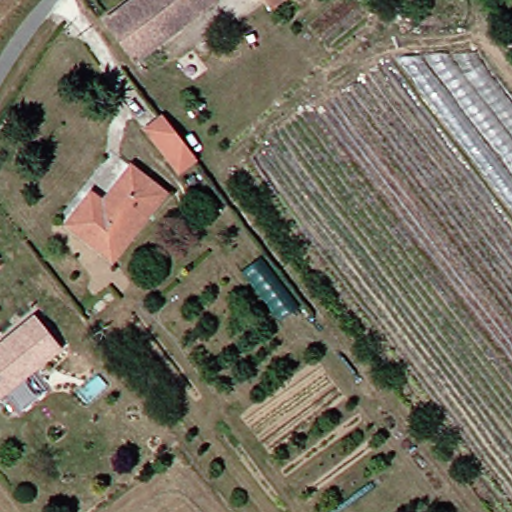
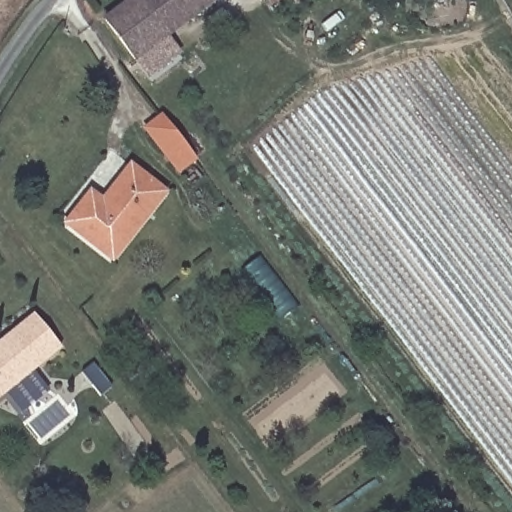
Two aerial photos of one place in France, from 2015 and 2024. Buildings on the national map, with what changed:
unchanged [(135,58),(110,23),(141,0),(215,0),(135,58)]
unchanged [(275,3),(273,0),(280,0),(275,3)]
demolished [(476,52),(512,99),(512,201),(401,57),(476,52)]
unchanged [(184,177),(149,135),(165,119),(200,162),(184,177)]
unchanged [(97,192),(107,201),(136,168),(167,194),(115,256),(72,225),(97,192)]
unchanged [(65,348),(0,400),(0,343),(6,338),(38,314),(65,348)]

